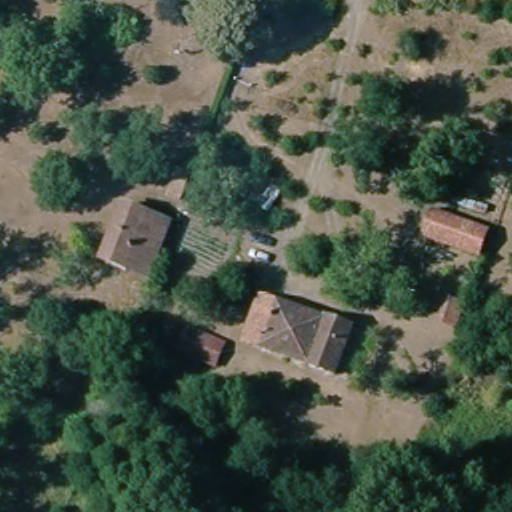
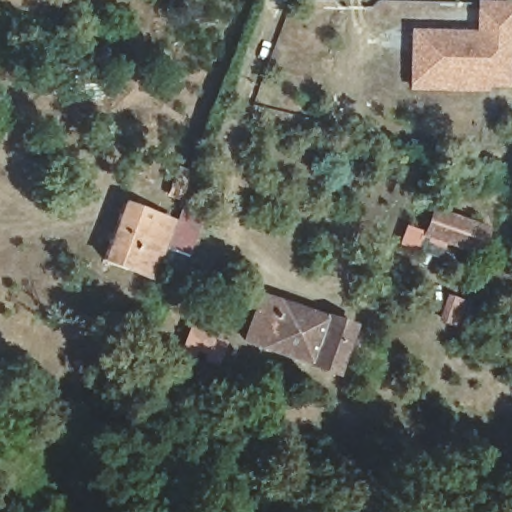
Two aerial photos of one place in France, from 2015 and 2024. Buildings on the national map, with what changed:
new [(475,30),(476,0),(500,0),(511,0),(508,85),(487,86),(487,91),(409,89),(410,29),(475,30)]
unchanged [(127,264),(103,254),(125,199),(149,208),(127,264)]
unchanged [(481,244),(425,224),(434,200),(490,222),(481,244)]
unchanged [(150,273),(127,264),(149,208),(172,217),(150,273)]
unchanged [(340,375),(269,346),(253,340),(266,310),(274,290),(287,296),(288,297),(360,326),(340,375)]
unchanged [(232,335),(217,372),(178,357),(193,321),(232,335)]

